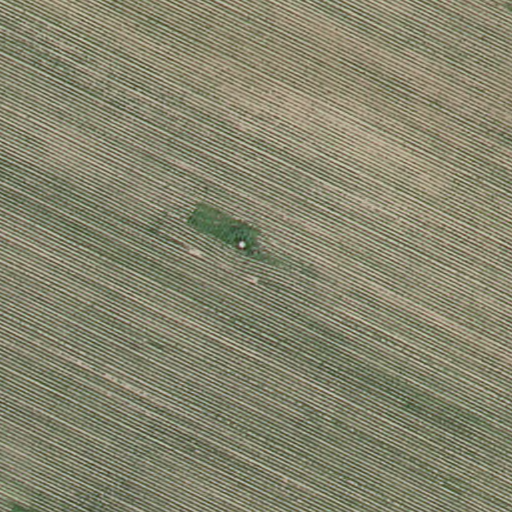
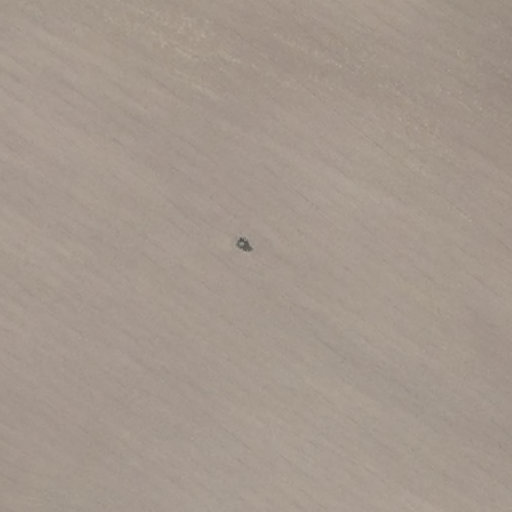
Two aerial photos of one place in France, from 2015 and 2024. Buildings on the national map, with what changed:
[]

